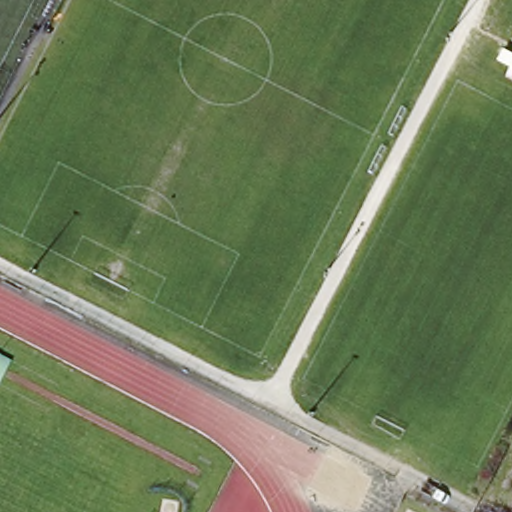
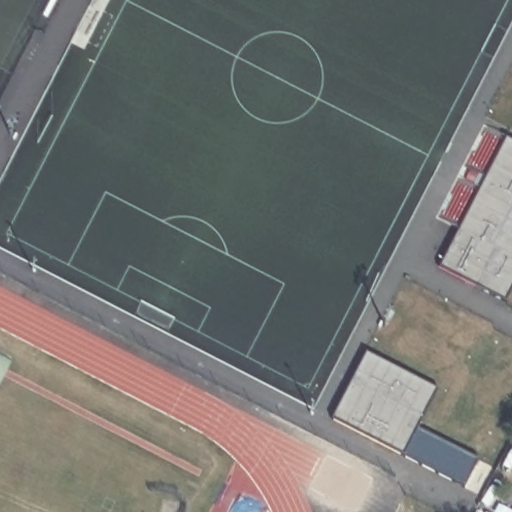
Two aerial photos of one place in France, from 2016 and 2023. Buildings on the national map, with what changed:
new [(462,226),(442,218),(460,180),(467,184),(474,168),(469,166),(487,129),(506,138),(462,226)]
new [(441,268),(462,226),(506,138),(512,141),(512,293),(507,303),(441,268)]
new [(467,487),(332,418),(367,352),(437,388),(418,428),(480,460),(467,487)]

